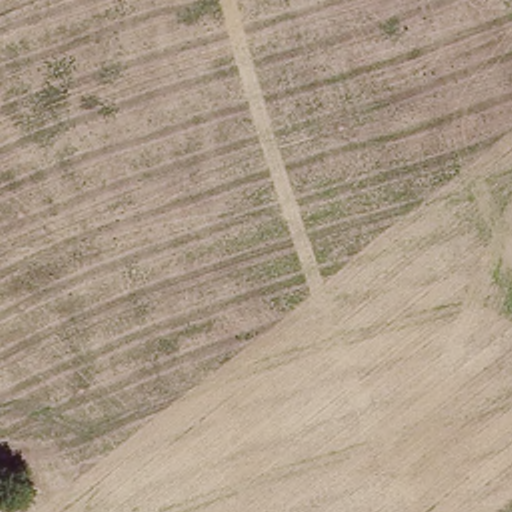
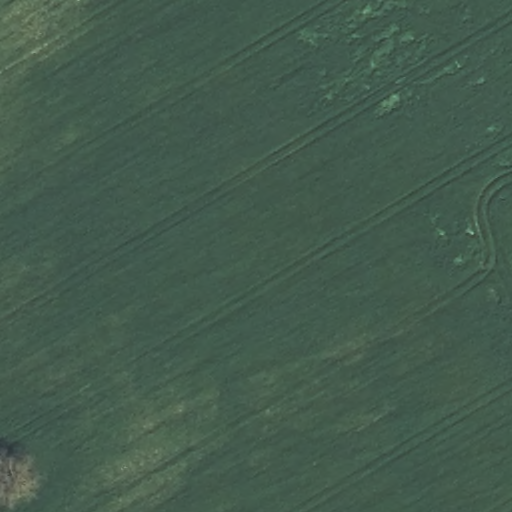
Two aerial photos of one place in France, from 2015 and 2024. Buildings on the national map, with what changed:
[]

